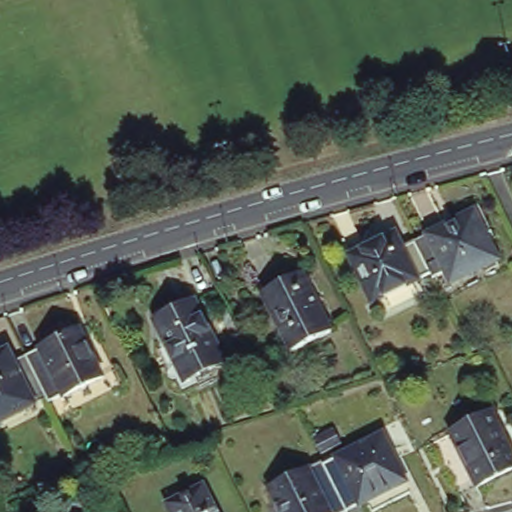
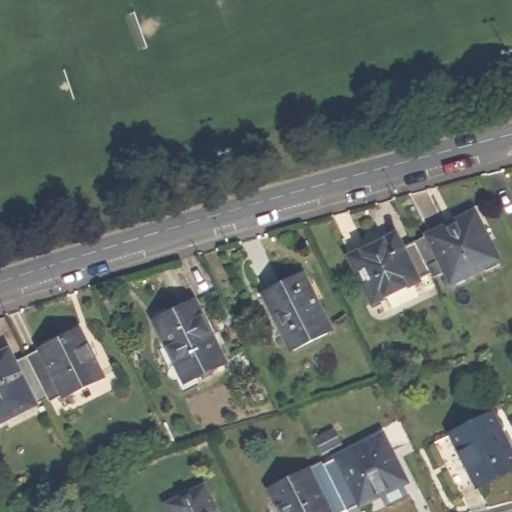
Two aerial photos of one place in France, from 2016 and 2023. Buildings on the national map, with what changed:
unchanged [(477,207),(501,254),(455,278),(450,268),(439,273),(436,268),(420,236),(477,207)]
unchanged [(422,275),(428,286),(394,303),(389,292),(378,297),(354,253),(399,231),(406,243),(420,236),(436,268),(422,275)]
unchanged [(260,287),(300,267),(330,327),(292,348),(260,287)]
unchanged [(159,317),(161,316),(159,312),(173,304),(176,309),(199,298),(228,357),(189,376),(159,317)]
unchanged [(79,331),(101,377),(64,397),(61,395),(49,402),(48,398),(27,357),(79,331)]
unchanged [(0,354),(9,350),(14,363),(27,357),(48,398),(0,422),(0,354)]
unchanged [(478,481),(463,489),(439,443),(455,434),(454,433),(496,412),(512,444),(512,472),(482,488),(478,481)]
unchanged [(307,445),(328,435),(335,450),(314,460),(307,445)]
unchanged [(378,435),(392,464),(390,465),(399,483),(340,512),(318,465),(378,435)]
unchanged [(315,461),(318,465),(340,512),(277,512),(264,487),(315,461)]
unchanged [(208,482),(223,512),(176,512),(170,501),(208,482)]

